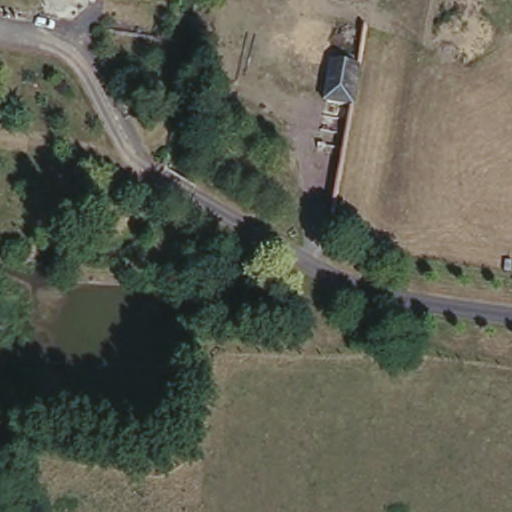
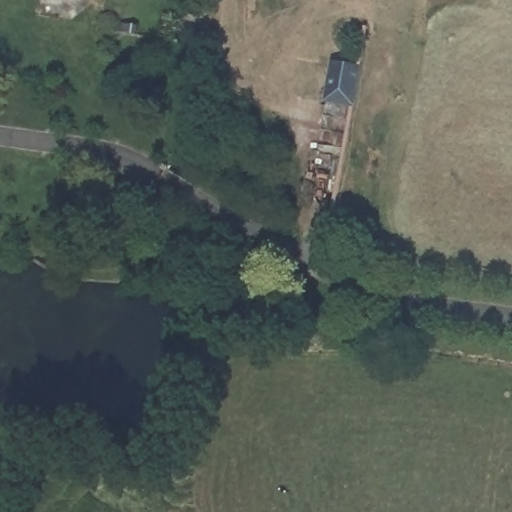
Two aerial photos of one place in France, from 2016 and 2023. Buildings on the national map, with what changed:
unchanged [(331,51),(357,54),(349,94),(325,91),(331,51)]

